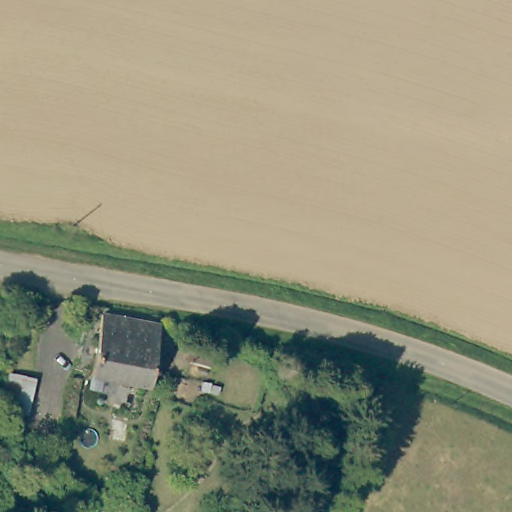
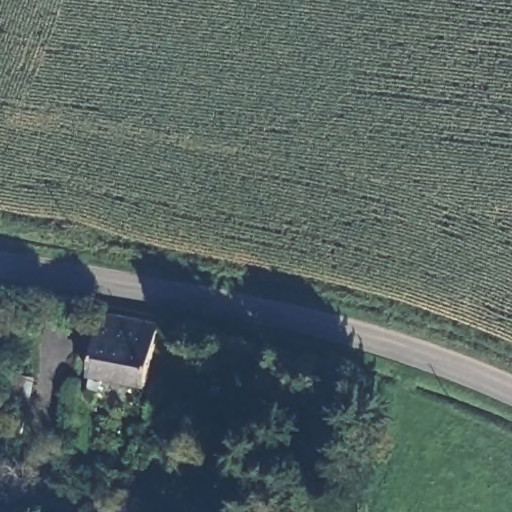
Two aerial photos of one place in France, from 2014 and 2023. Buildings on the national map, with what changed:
unchanged [(101,313),(158,324),(147,385),(90,375),(101,313)]
unchanged [(192,347),(211,352),(207,367),(188,361),(192,347)]

